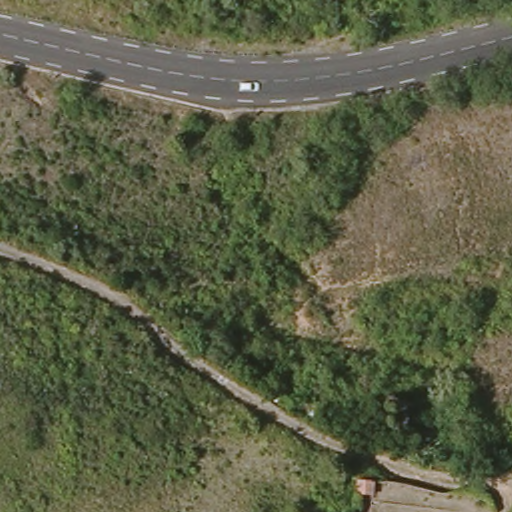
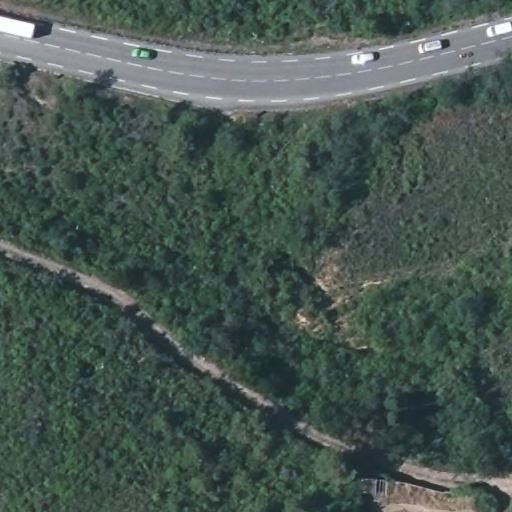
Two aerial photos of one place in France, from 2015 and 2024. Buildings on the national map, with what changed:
unchanged [(373,477),(369,502),(350,500),(350,476),(373,477)]

